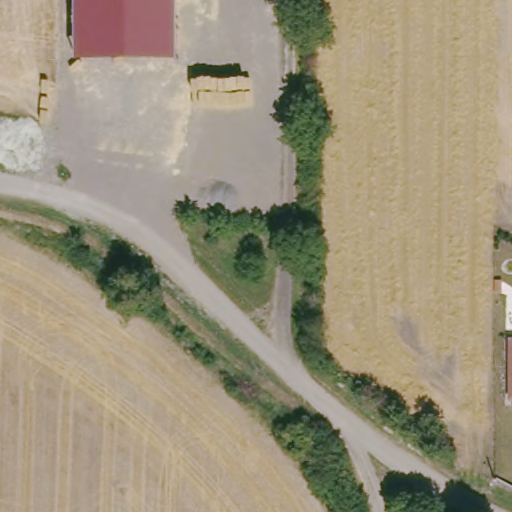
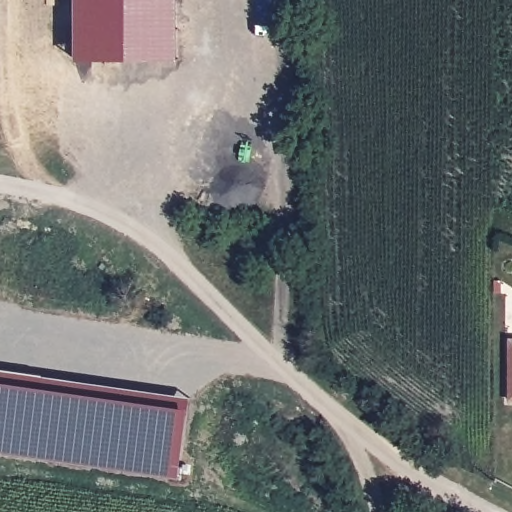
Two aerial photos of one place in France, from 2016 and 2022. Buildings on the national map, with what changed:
unchanged [(177,0),(178,61),(76,60),(75,0),(177,0)]
unchanged [(510,400),(511,353),(511,339),(512,339),(512,400),(510,400)]
new [(58,464),(0,456),(0,372),(70,382),(58,464)]
new [(70,382),(76,383),(188,400),(177,481),(58,464),(70,382)]

